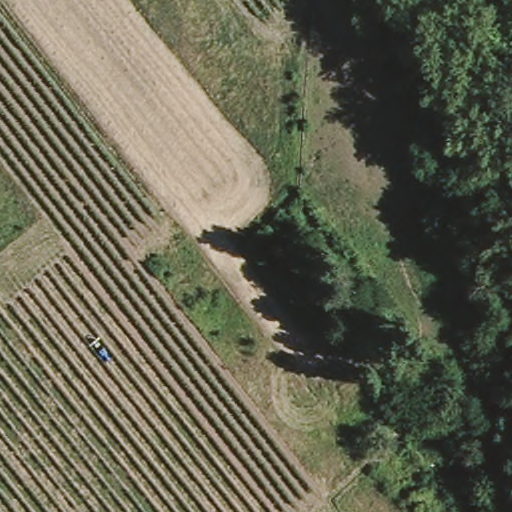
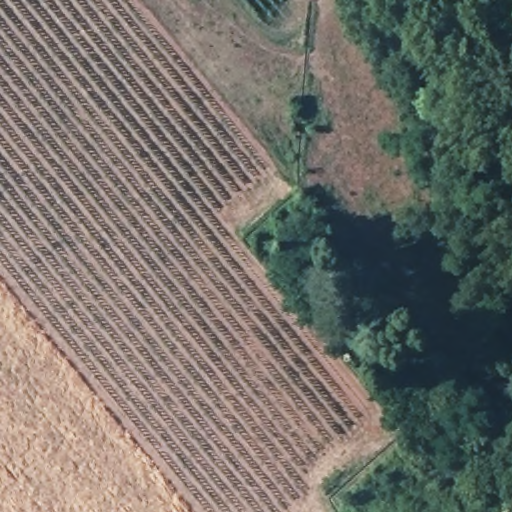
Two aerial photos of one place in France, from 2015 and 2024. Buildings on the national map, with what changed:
[]

